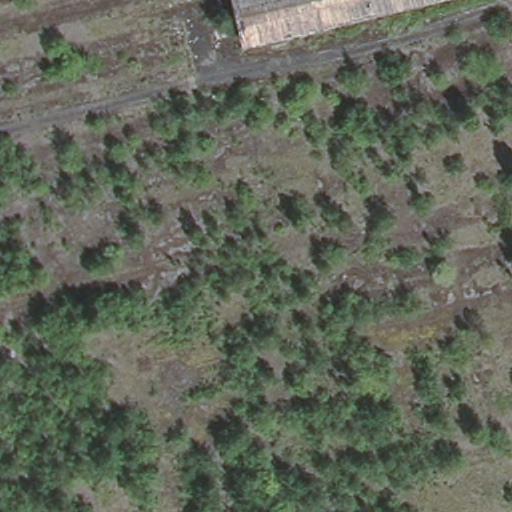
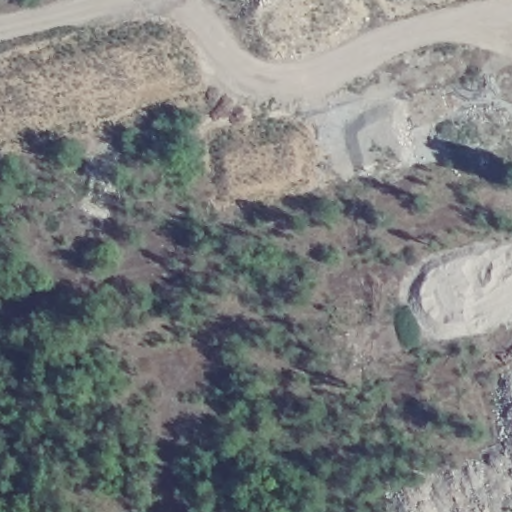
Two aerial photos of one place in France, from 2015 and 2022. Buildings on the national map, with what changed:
demolished [(240,54),(228,0),(458,0),(240,54)]

